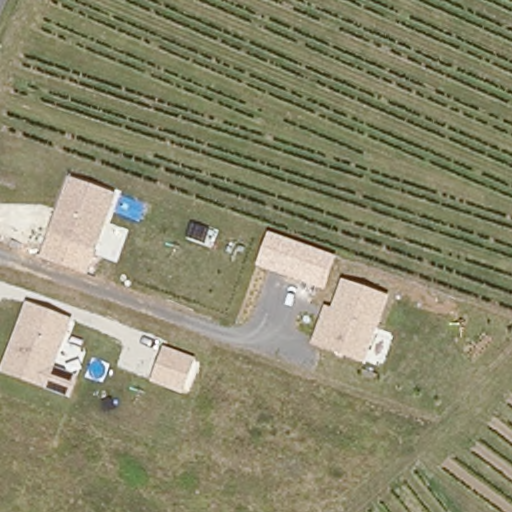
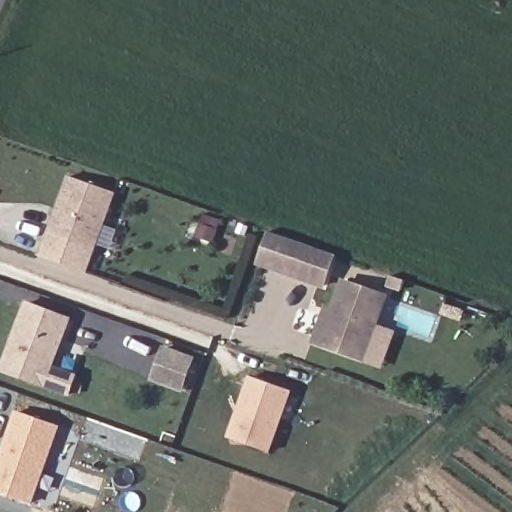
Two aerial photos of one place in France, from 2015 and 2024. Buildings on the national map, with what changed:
unchanged [(48,233),(70,177),(117,195),(97,249),(48,233)]
unchanged [(87,274),(40,257),(48,233),(97,249),(87,274)]
unchanged [(258,268),(271,233),(338,255),(326,290),(258,268)]
unchanged [(364,364),(310,345),(324,304),(333,308),(342,279),(390,295),(364,364)]
unchanged [(54,366),(78,374),(71,394),(1,371),(26,301),(71,318),(54,366)]
unchanged [(182,393),(149,382),(162,347),(195,357),(182,393)]
new [(293,391),(272,453),(227,438),(249,374),(293,391)]
new [(1,451),(15,410),(60,426),(32,505),(0,494),(0,451),(1,451)]

